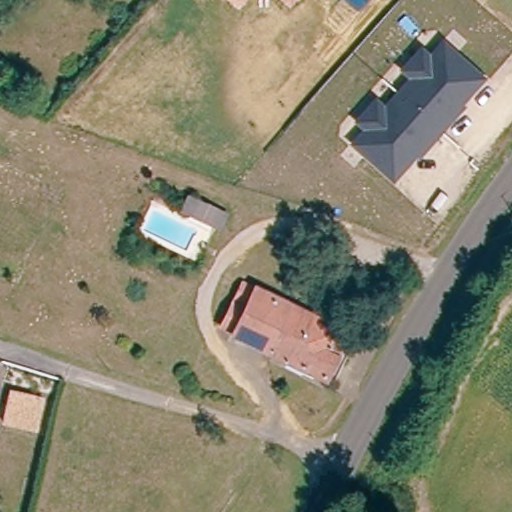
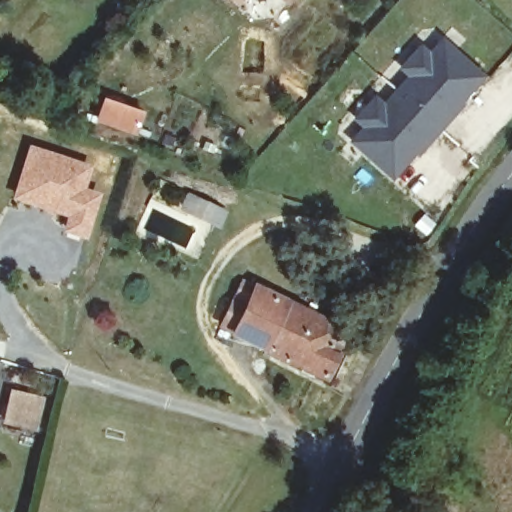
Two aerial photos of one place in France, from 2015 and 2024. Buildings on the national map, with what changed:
unchanged [(237,5),(231,0),(241,0),(237,5)]
unchanged [(462,103),(465,106),(418,157),(413,155),(392,182),(347,142),(360,127),(352,118),(375,94),(382,101),(407,75),(397,67),(420,42),(428,50),(441,36),(484,78),(462,103)]
new [(86,170),(79,193),(97,198),(85,237),(67,232),(72,217),(30,205),(15,201),(22,177),(29,153),(86,170)]
unchanged [(187,192),(227,211),(220,230),(181,209),(187,192)]
unchanged [(263,342),(225,321),(237,297),(252,304),(260,289),(284,302),(263,342)]
unchanged [(335,330),(328,342),(336,349),(322,375),(263,342),(284,302),(335,330)]
unchanged [(33,428),(2,420),(10,391),(41,397),(33,428)]

